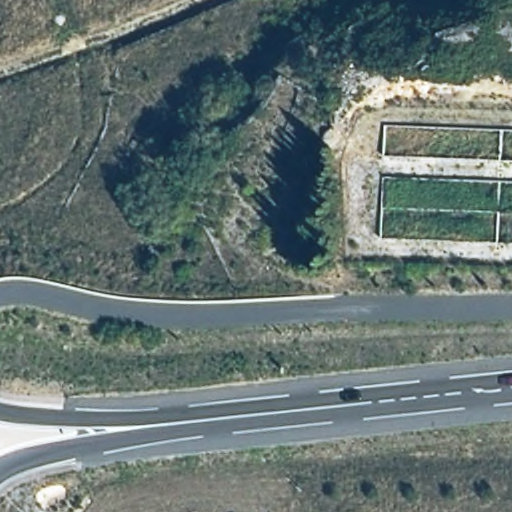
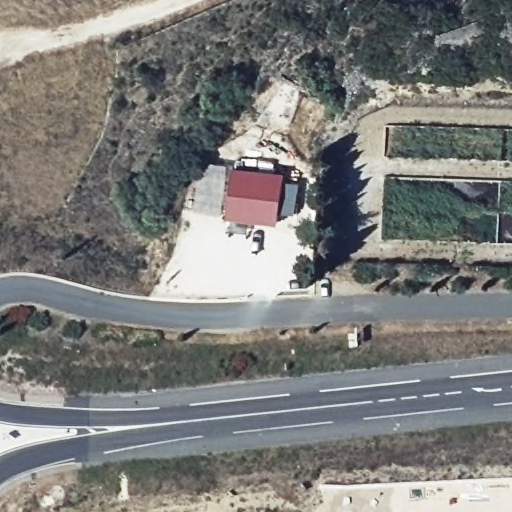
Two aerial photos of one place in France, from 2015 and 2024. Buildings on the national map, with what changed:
new [(285,173),(278,224),(227,217),(235,166),(285,173)]

